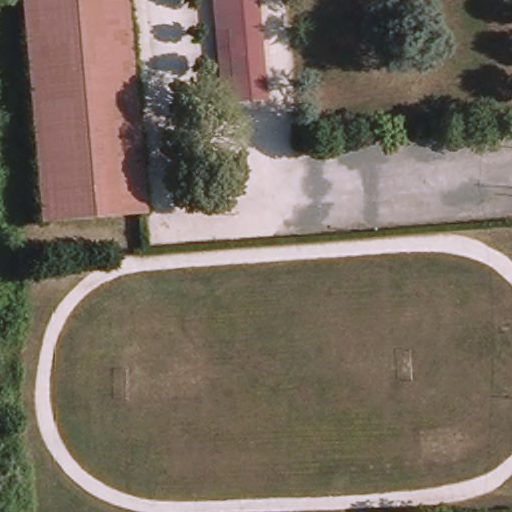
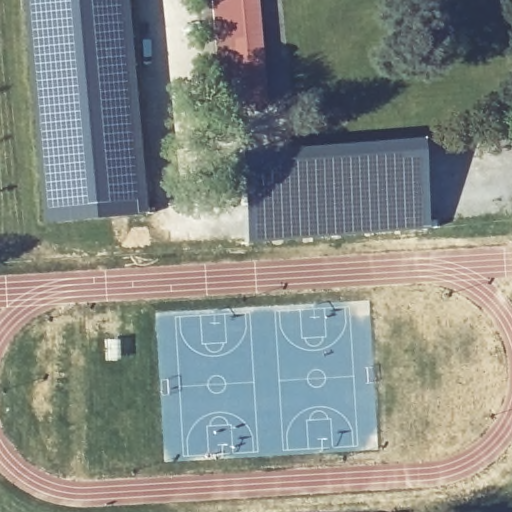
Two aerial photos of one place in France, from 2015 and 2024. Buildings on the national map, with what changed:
unchanged [(63,218),(43,221),(25,0),(127,0),(130,34),(145,186),(148,210),(63,218)]
unchanged [(233,101),(226,29),(216,30),(215,0),(260,0),(268,99),(233,101)]
new [(241,154),(421,139),(429,226),(249,240),(241,154)]

